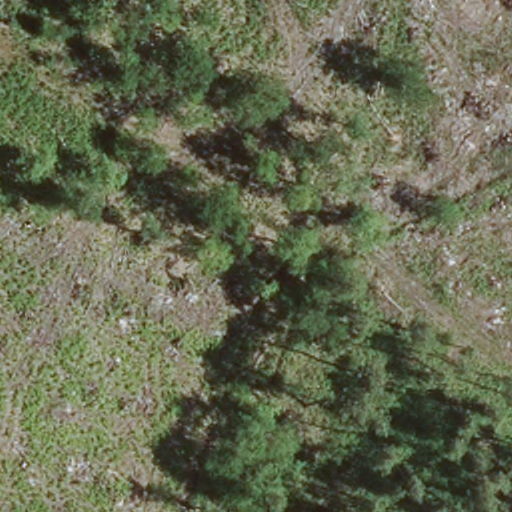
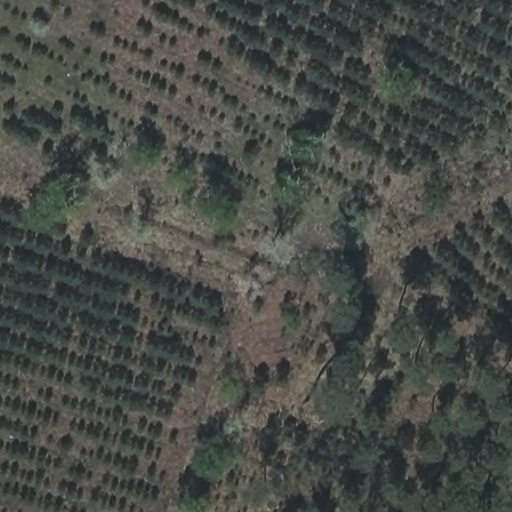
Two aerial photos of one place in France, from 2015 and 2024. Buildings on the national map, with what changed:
[]

